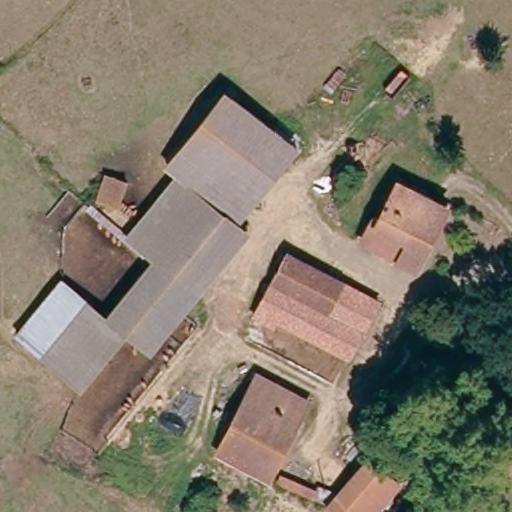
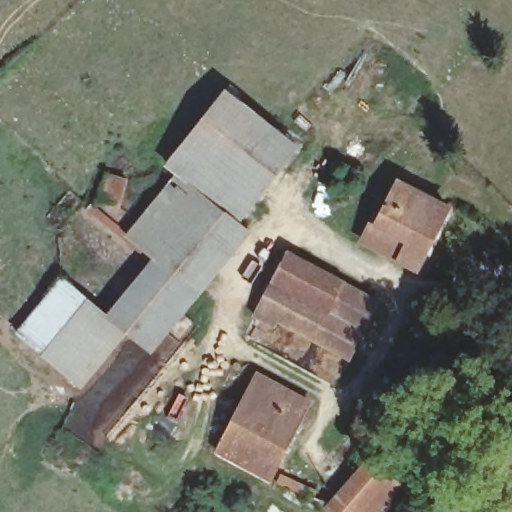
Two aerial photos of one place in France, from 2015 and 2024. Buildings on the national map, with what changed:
unchanged [(175,165),(165,157),(225,87),(290,139),(230,210),(175,165)]
unchanged [(154,249),(125,230),(175,165),(230,210),(245,222),(199,281),(154,249)]
unchanged [(415,268),(355,237),(364,220),(370,224),(392,180),(442,205),(446,207),(435,227),(425,247),(415,268)]
unchanged [(154,249),(199,281),(149,342),(122,323),(104,308),(154,249)]
unchanged [(285,250),(325,268),(315,290),(275,271),(285,250)]
unchanged [(380,295),(346,356),(255,309),(275,271),(315,290),(325,268),(380,295)]
unchanged [(76,382),(19,331),(64,276),(104,308),(122,323),(76,382)]
unchanged [(512,305),(512,335),(498,325),(512,305)]
unchanged [(263,476),(212,450),(254,375),(305,402),(263,476)]
unchanged [(498,396),(483,432),(438,411),(452,378),(498,396)]
unchanged [(403,487),(379,512),(334,512),(326,505),(366,457),(403,487)]
unchanged [(329,490),(325,500),(285,484),(290,475),(329,490)]

